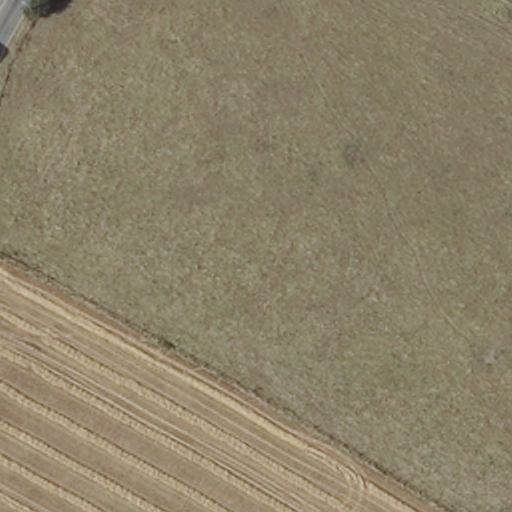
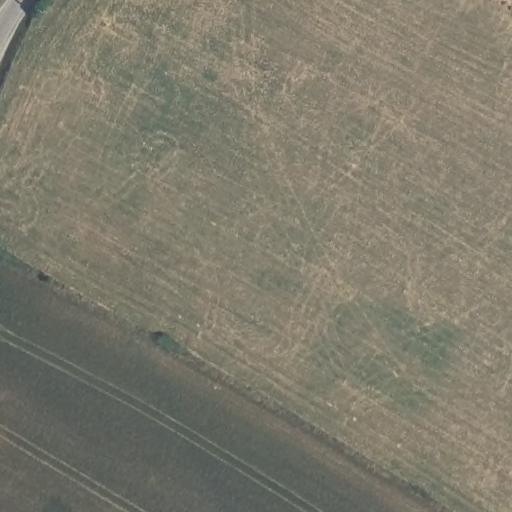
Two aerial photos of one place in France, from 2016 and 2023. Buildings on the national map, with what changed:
unchanged [(4,0),(0,7),(0,0),(4,0)]

